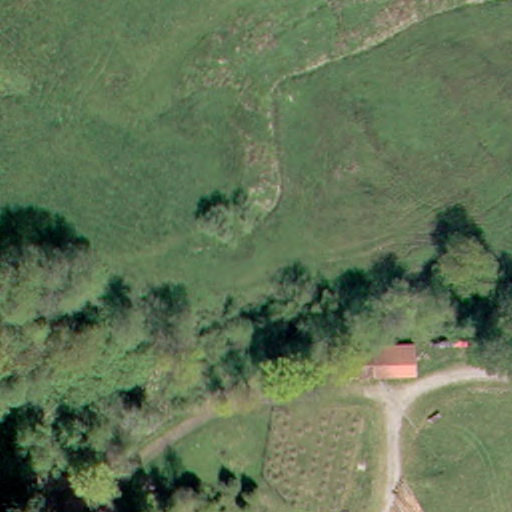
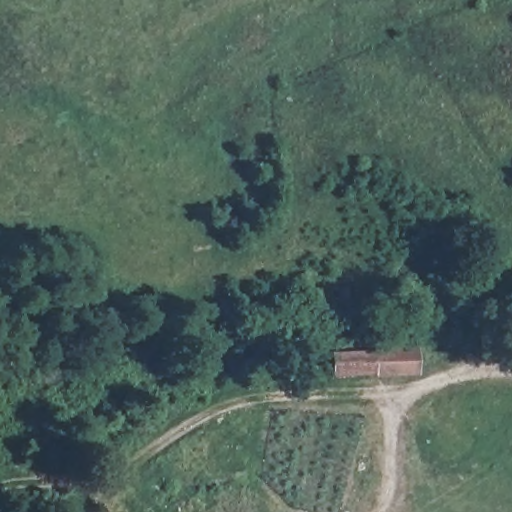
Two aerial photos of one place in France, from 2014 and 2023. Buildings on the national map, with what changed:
unchanged [(418,379),(364,379),(365,344),(420,345),(418,379)]

